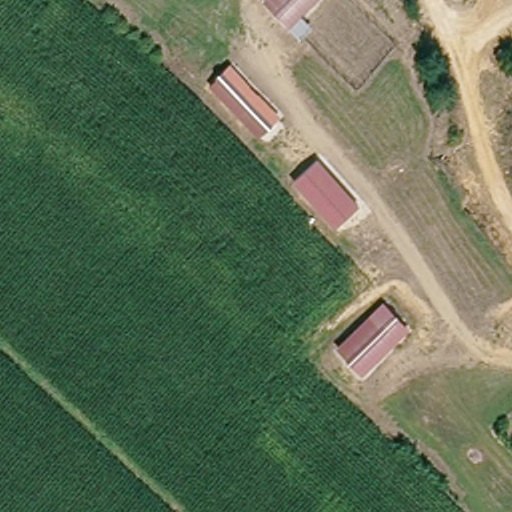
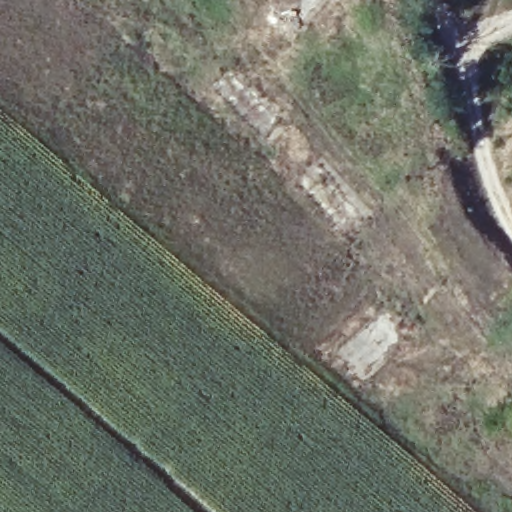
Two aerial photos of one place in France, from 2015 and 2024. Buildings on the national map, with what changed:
demolished [(265,0),(322,0),(292,34),(261,4),(265,0)]
demolished [(231,69),(282,118),(256,144),(207,92),(231,69)]
demolished [(316,161),(365,215),(342,236),(292,182),(316,161)]
demolished [(366,373),(342,348),(383,308),(407,334),(366,373)]

